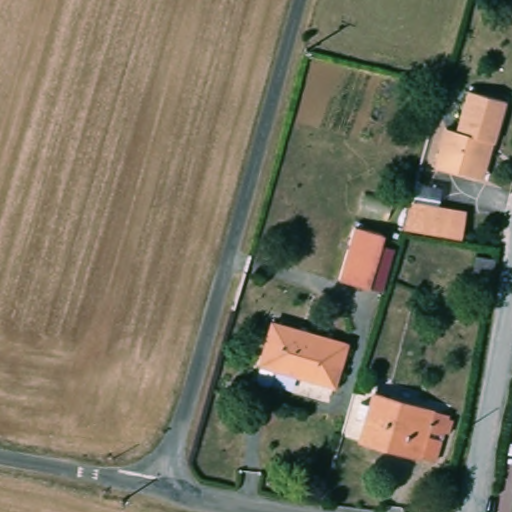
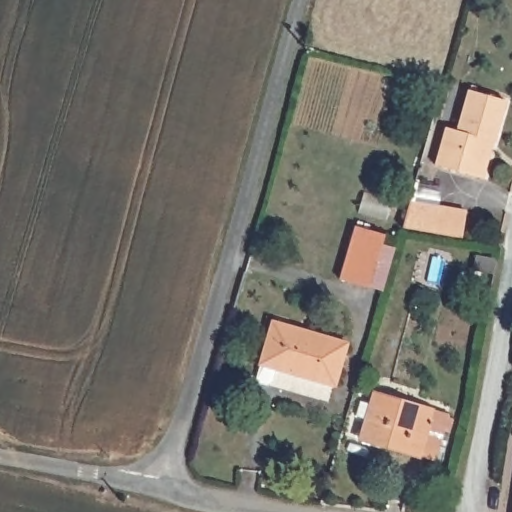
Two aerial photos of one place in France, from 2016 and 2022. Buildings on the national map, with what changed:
unchanged [(476,178),(434,165),(444,128),(454,131),(466,90),(504,102),(492,142),(481,180),(476,178)]
unchanged [(468,211),(460,238),(401,223),(408,196),(468,211)]
unchanged [(386,232),(370,285),(342,277),(358,224),(386,232)]
unchanged [(269,379),(262,376),(260,372),(265,359),(263,358),(277,316),(296,323),(351,342),(337,385),(283,365),(279,364),(274,377),(269,379)]
unchanged [(450,415),(449,418),(436,460),(419,455),(418,457),(361,439),(367,419),(357,416),(362,401),(371,404),(373,396),(374,393),(450,415)]

